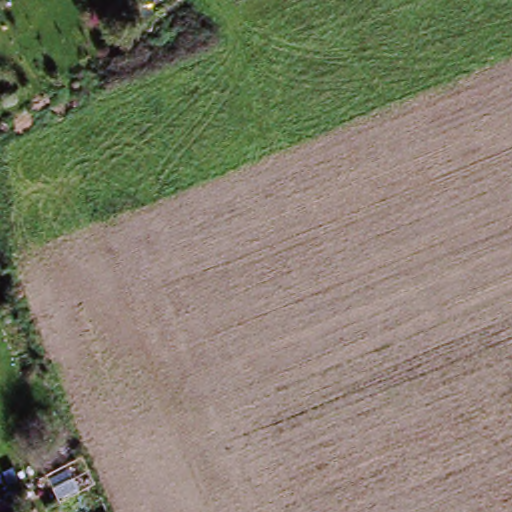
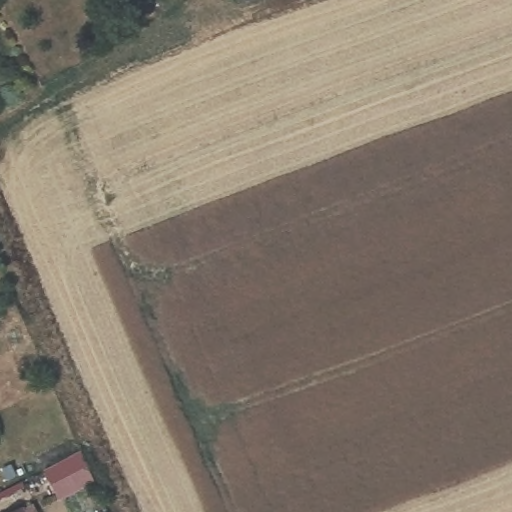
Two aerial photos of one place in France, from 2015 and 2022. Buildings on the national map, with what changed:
new [(97,481),(60,502),(43,471),(82,451),(97,481)]
unchanged [(31,512),(27,512),(30,511),(31,512)]

